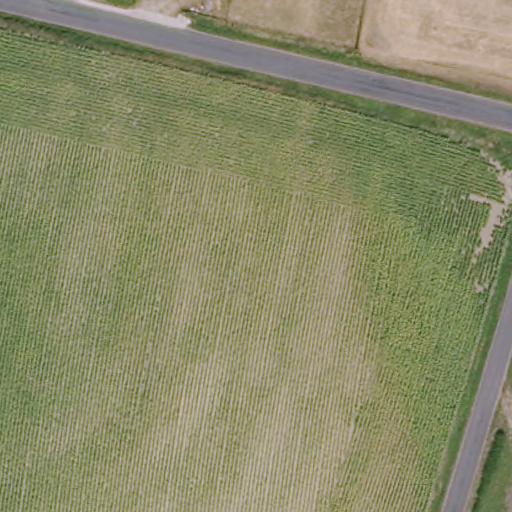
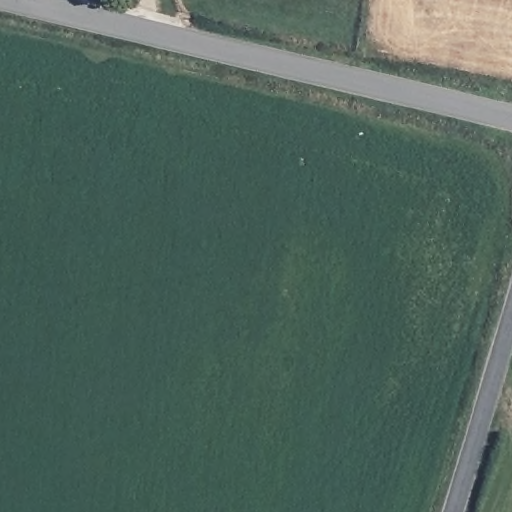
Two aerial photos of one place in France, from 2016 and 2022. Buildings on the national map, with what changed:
[]

